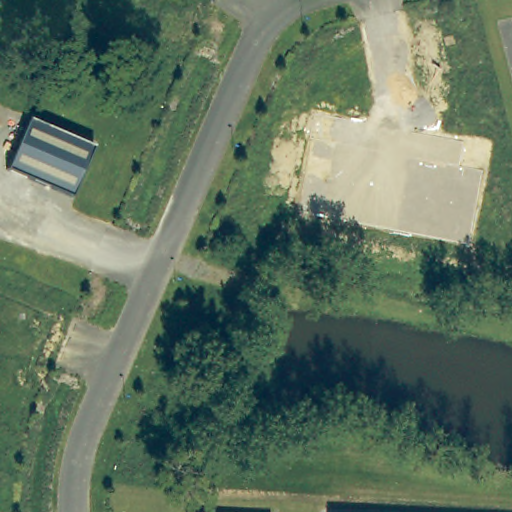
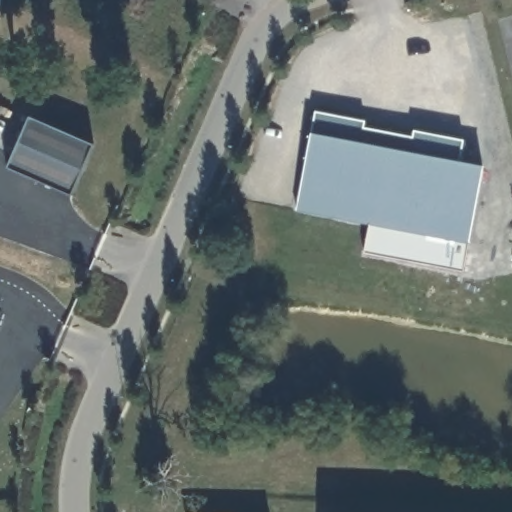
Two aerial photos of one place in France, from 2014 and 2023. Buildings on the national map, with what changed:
new [(365,122),(363,128),(412,137),(414,131),(463,141),(458,162),(483,167),(469,244),(296,210),(310,134),(315,111),(365,122)]
unchanged [(9,168),(30,118),(95,146),(73,195),(9,168)]

